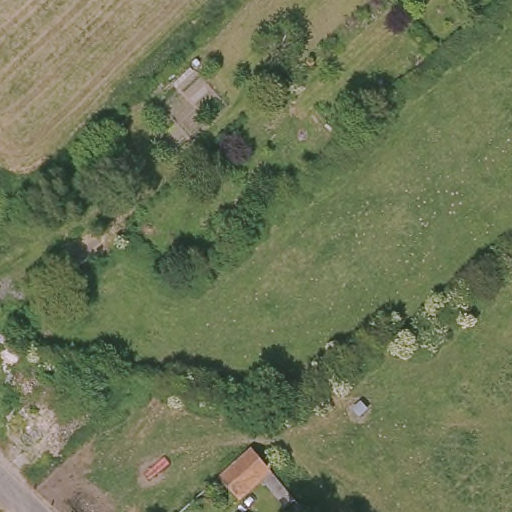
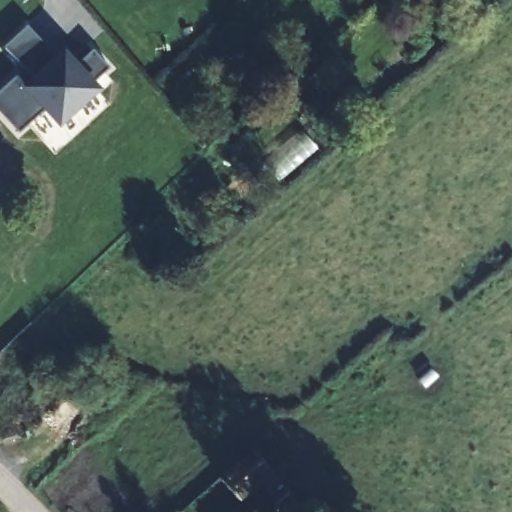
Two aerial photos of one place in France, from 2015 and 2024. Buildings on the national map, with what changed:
new [(37,80),(29,70),(9,46),(34,26),(54,50),(62,60),(37,80)]
new [(67,57),(72,64),(75,62),(79,67),(97,52),(112,70),(93,86),(98,92),(58,124),(47,111),(20,133),(0,109),(0,92),(21,75),(31,87),(67,57)]
unchanged [(282,500),(257,472),(232,494),(216,476),(249,447),(292,492),(301,502),(292,510),(282,500)]

